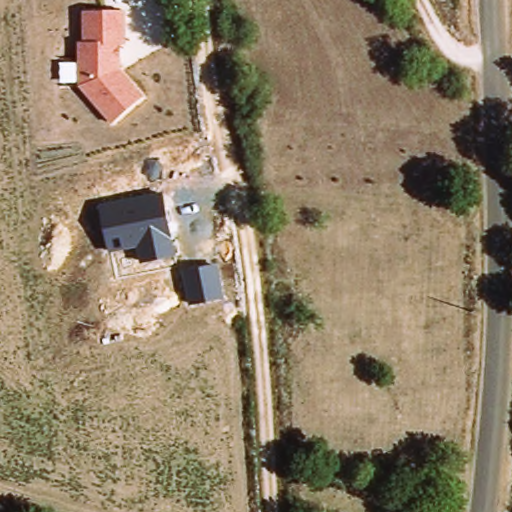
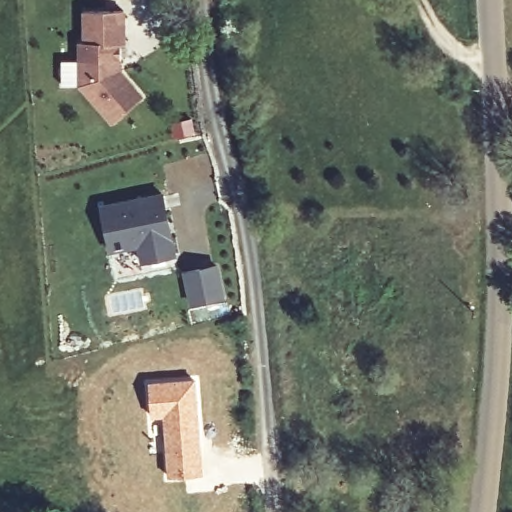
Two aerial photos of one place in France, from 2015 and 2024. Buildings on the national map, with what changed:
unchanged [(127,11),(127,46),(120,46),(120,70),(144,94),(110,123),(77,84),(78,43),(85,42),(85,11),(127,11)]
unchanged [(175,256),(142,263),(139,246),(110,251),(102,204),(163,193),(175,256)]
unchanged [(217,262),(224,297),(189,304),(182,270),(217,262)]
new [(197,376),(203,473),(166,476),(160,416),(150,417),(146,380),(197,376)]

